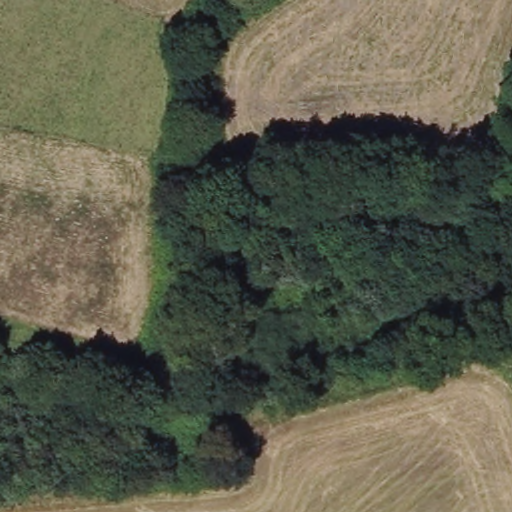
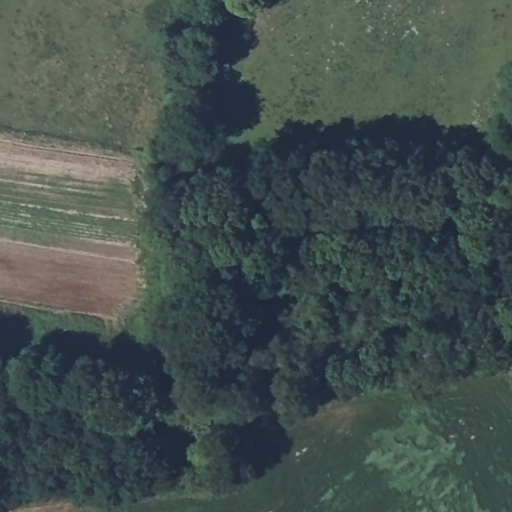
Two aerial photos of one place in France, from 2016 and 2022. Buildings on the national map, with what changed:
[]

